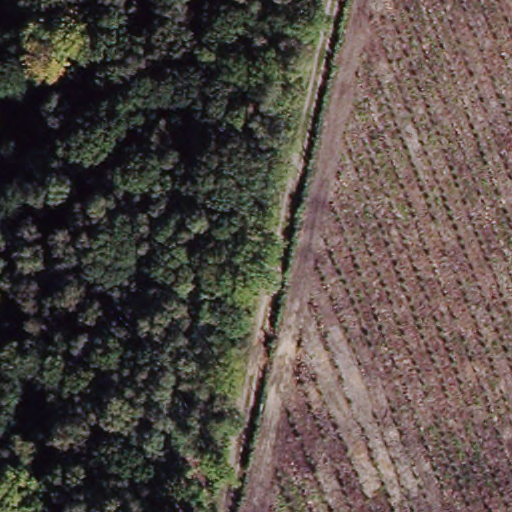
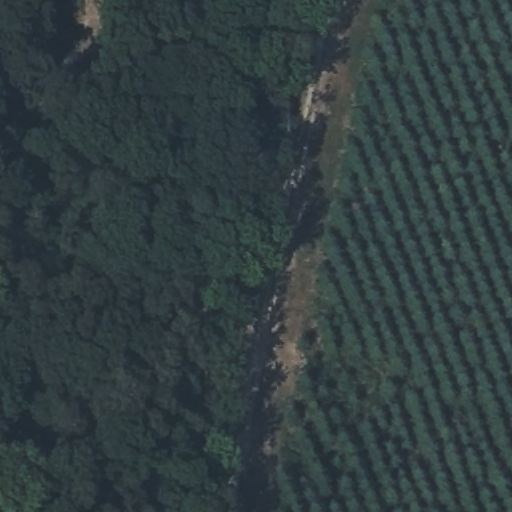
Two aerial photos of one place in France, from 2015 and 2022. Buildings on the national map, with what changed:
[]

